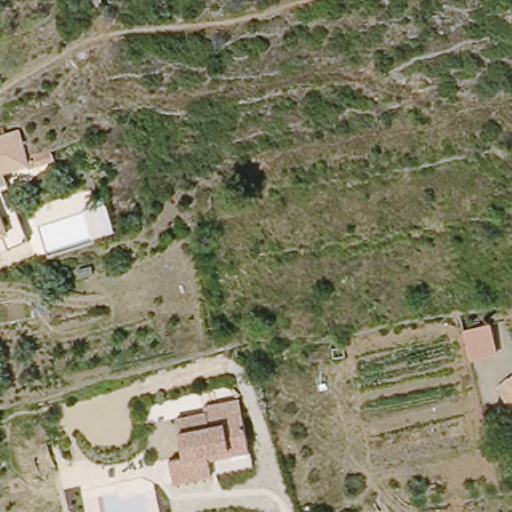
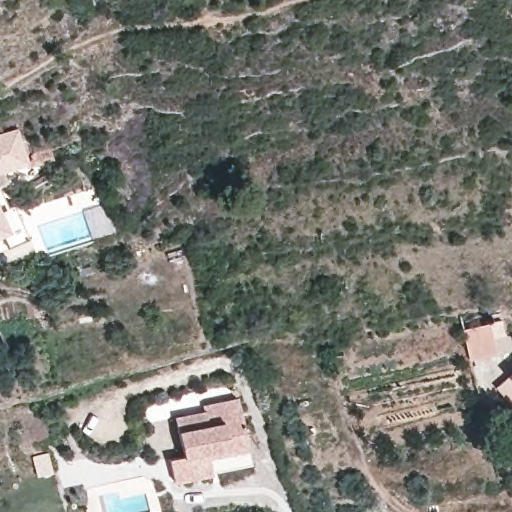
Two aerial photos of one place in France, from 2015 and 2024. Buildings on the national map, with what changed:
unchanged [(16,131),(27,162),(2,172),(6,183),(0,186),(0,134),(1,135),(16,131)]
unchanged [(0,234),(0,220),(5,232),(0,234)]
unchanged [(484,332),(492,361),(470,367),(463,336),(484,332)]
unchanged [(499,386),(512,376),(512,403),(499,386)]
unchanged [(210,461),(214,477),(176,486),(171,463),(185,460),(176,422),(207,416),(210,428),(244,421),(249,446),(251,452),(210,461)]
unchanged [(48,460),(44,451),(34,455),(27,438),(50,429),(57,445),(52,447),(56,457),(48,460)]

